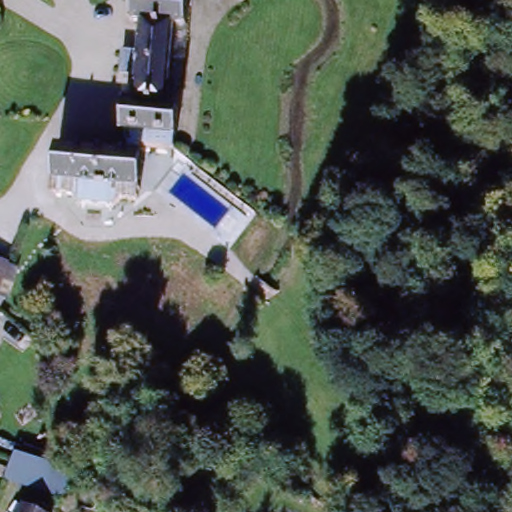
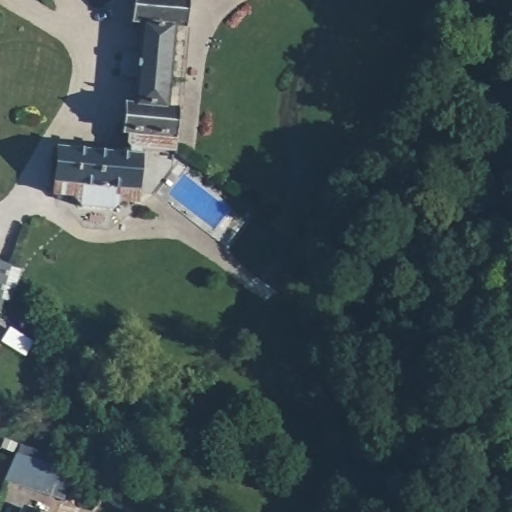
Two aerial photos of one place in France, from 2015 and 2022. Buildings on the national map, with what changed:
unchanged [(134,0),(185,0),(184,14),(175,13),(143,11),(134,10),(134,0)]
unchanged [(124,65),(125,42),(140,43),(143,11),(175,13),(168,97),(137,95),(139,66),(137,66),(124,65)]
unchanged [(125,135),(123,135),(125,122),(123,122),(125,94),(137,95),(168,97),(177,98),(174,127),(172,140),(139,136),(137,142),(136,175),(54,170),(56,137),(125,142),(125,135)]
unchanged [(54,170),(136,175),(137,189),(122,190),(112,198),(80,196),(71,186),(48,183),(49,171),(54,170)]
unchanged [(12,305),(0,301),(0,262),(25,270),(12,305)]
unchanged [(55,492),(37,484),(25,478),(9,472),(15,456),(32,462),(45,468),(62,475),(55,492)]
unchanged [(25,512),(30,500),(54,512),(25,512)]

